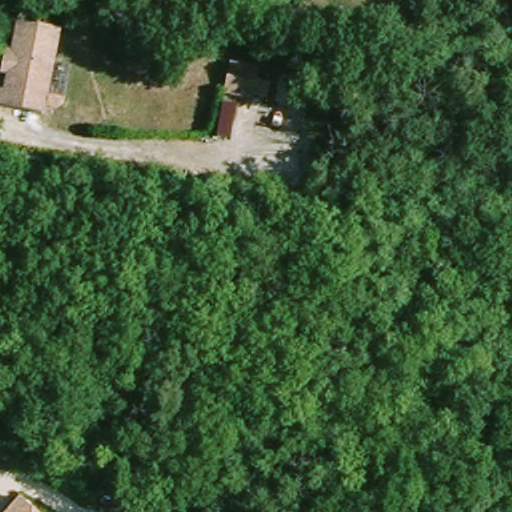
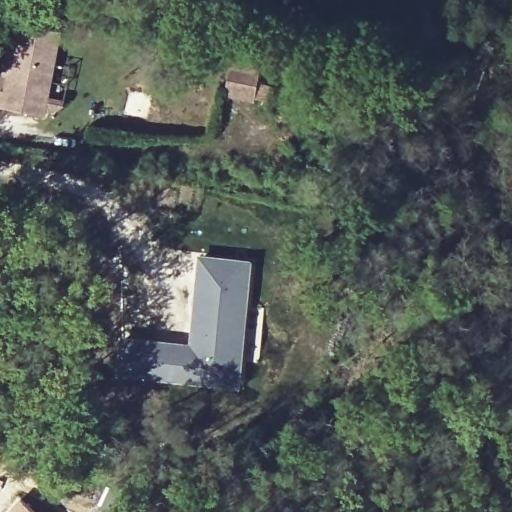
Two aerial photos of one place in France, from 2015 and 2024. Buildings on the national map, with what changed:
unchanged [(73,28),(56,112),(10,104),(15,88),(20,89),(22,72),(17,71),(21,50),(29,51),(33,21),(73,28)]
unchanged [(253,64),(249,94),(218,89),(223,59),(253,64)]
new [(250,258),(239,385),(118,373),(120,336),(190,343),(198,253),(250,258)]
unchanged [(26,500),(39,512),(16,512),(26,500)]

